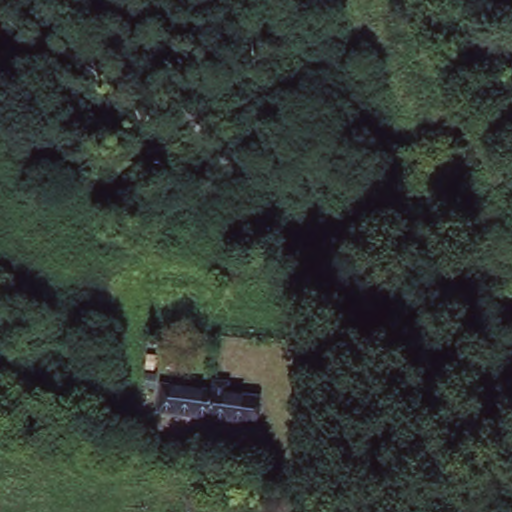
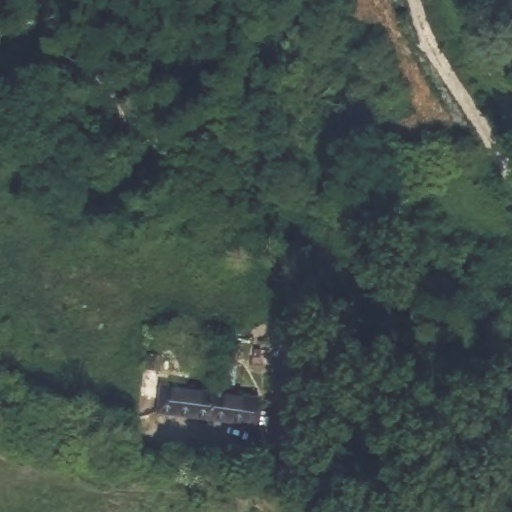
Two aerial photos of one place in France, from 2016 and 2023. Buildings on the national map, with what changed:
unchanged [(268,418),(154,412),(158,384),(204,386),(235,339),(250,349),(222,390),(269,389),(268,418)]

